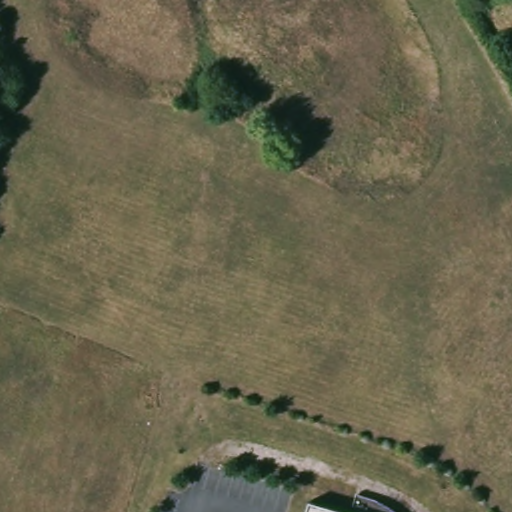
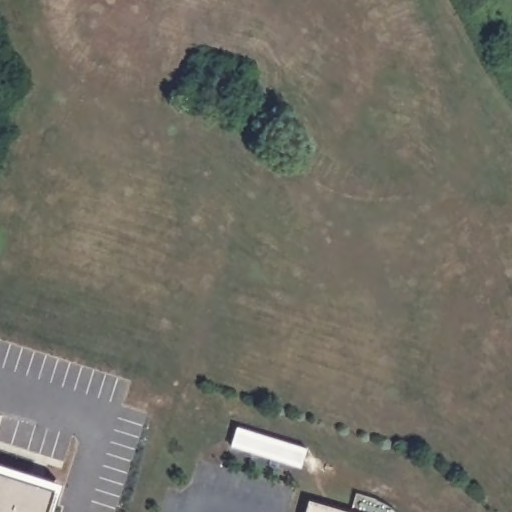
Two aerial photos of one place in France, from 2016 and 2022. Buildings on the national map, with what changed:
new [(53,512),(0,512),(0,465),(61,485),(53,512)]
unchanged [(343,512),(301,512),(304,500),(343,512)]

